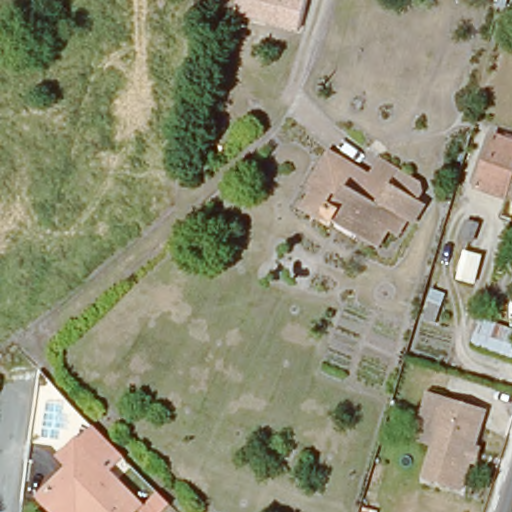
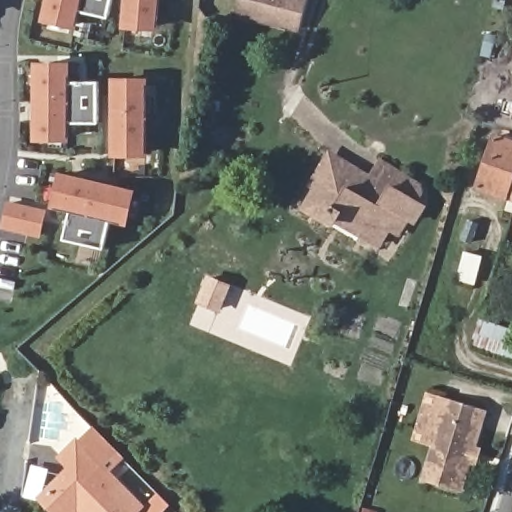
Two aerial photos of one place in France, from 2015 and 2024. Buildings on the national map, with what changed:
new [(46,0),(82,0),(80,11),(75,29),(41,20),(46,0)]
new [(80,11),(82,0),(112,0),(107,18),(80,11)]
new [(124,0),(160,0),(157,30),(121,27),(124,0)]
unchanged [(237,14),(241,0),(308,0),(301,29),(237,14)]
new [(35,141),(35,61),(70,62),(70,81),(70,124),(70,141),(35,141)]
new [(111,157),(111,77),(147,78),(146,156),(111,157)]
new [(99,81),(99,124),(70,124),(70,81),(99,81)]
unchanged [(480,191),(498,141),(512,145),(512,203),(511,203),(480,191)]
unchanged [(360,175),(374,154),(395,166),(420,181),(411,196),(418,201),(409,217),(402,213),(391,229),(384,225),(373,244),(358,234),(361,229),(332,211),(328,216),(305,202),(315,184),(310,180),(325,154),(360,175)]
new [(128,225),(110,221),(70,212),(53,208),(61,172),(136,189),(128,225)]
new [(8,204),(45,212),(39,237),(1,229),(8,204)]
new [(105,248),(64,239),(70,212),(110,221),(105,248)]
unchanged [(480,225),(472,245),(458,240),(465,220),(480,225)]
unchanged [(457,279),(465,252),(482,257),(475,285),(457,279)]
unchanged [(445,328),(423,320),(429,299),(440,303),(438,313),(448,316),(445,328)]
unchanged [(476,317),(512,328),(512,353),(470,340),(476,317)]
unchanged [(473,458),(462,491),(425,479),(441,430),(436,429),(422,424),(432,391),(446,396),(488,409),(477,444),(483,446),(479,459),(473,458)]
unchanged [(39,505),(70,474),(60,463),(75,448),(91,433),(119,460),(121,462),(105,478),(137,512),(46,512),(39,505)]

